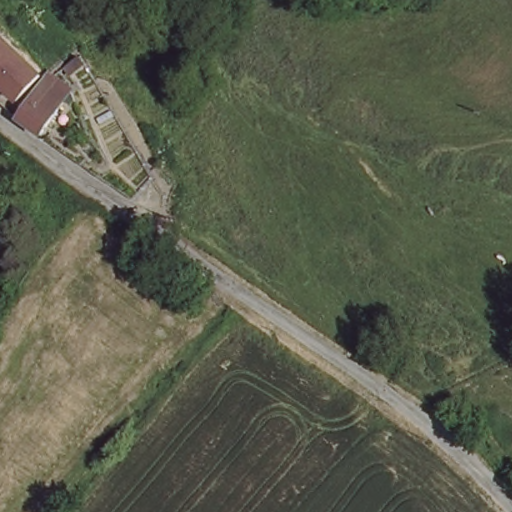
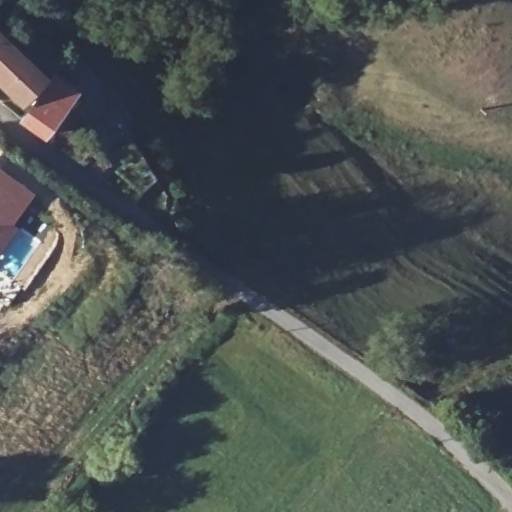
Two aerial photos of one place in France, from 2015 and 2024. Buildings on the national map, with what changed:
unchanged [(17,56),(25,65),(22,71),(37,85),(12,110),(0,98),(0,49),(13,61),(17,56)]
unchanged [(67,104),(35,142),(13,125),(48,85),(67,104)]
new [(18,228),(0,252),(0,167),(34,192),(12,224),(18,228)]

